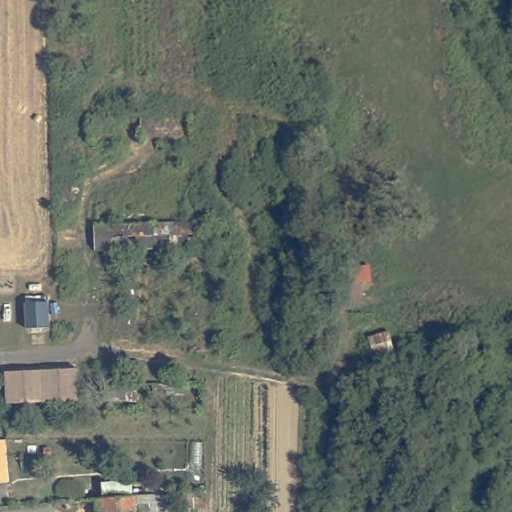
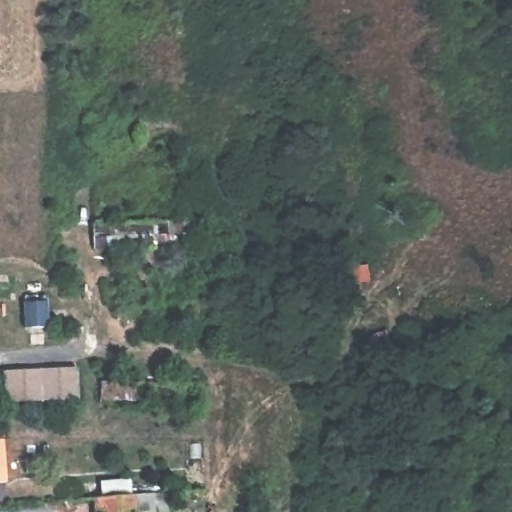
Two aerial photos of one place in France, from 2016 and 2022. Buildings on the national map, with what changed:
unchanged [(95,221),(195,216),(196,247),(95,249),(95,221)]
unchanged [(46,303),(47,326),(25,328),(22,305),(46,303)]
unchanged [(387,331),(392,349),(373,355),(368,337),(387,331)]
unchanged [(22,368),(79,367),(79,398),(44,399),(23,399),(6,399),(5,369),(22,368)]
unchanged [(8,482),(0,482),(0,439),(5,439),(8,482)]
unchanged [(159,512),(102,512),(101,504),(159,499),(159,512)]

